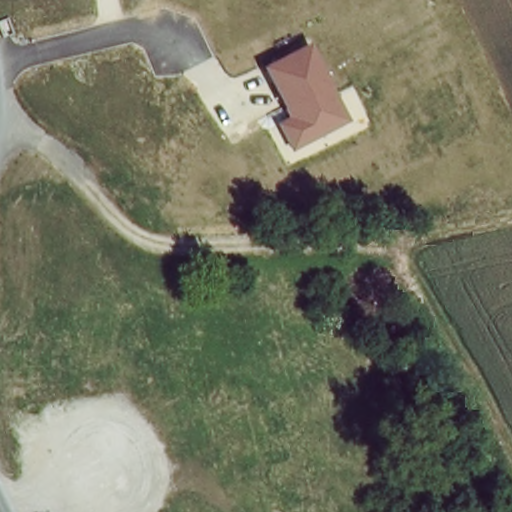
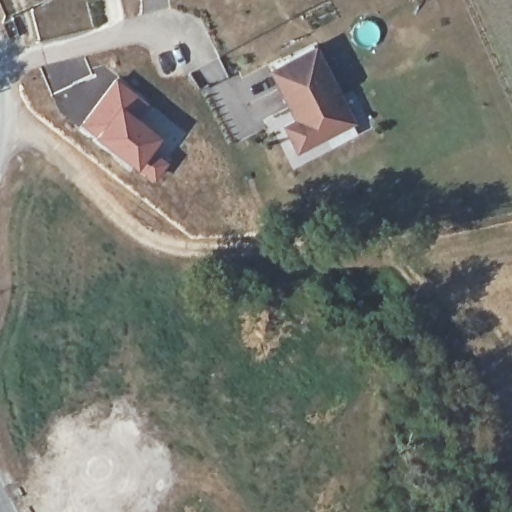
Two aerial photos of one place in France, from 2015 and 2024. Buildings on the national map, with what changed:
unchanged [(281,125),(293,118),(270,69),(315,44),(354,122),(296,151),(281,125)]
new [(116,76),(149,104),(139,116),(160,134),(150,145),(168,161),(152,180),(78,123),(116,76)]

